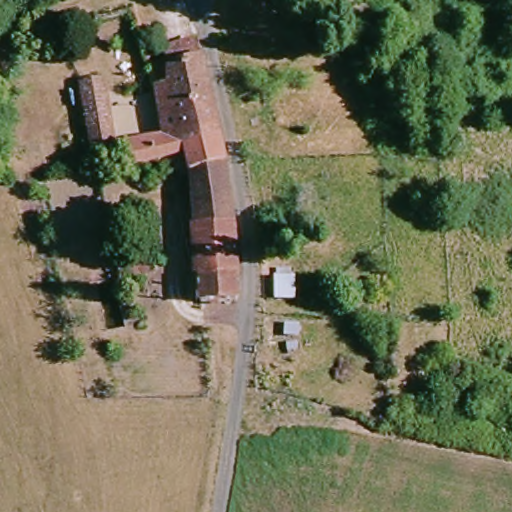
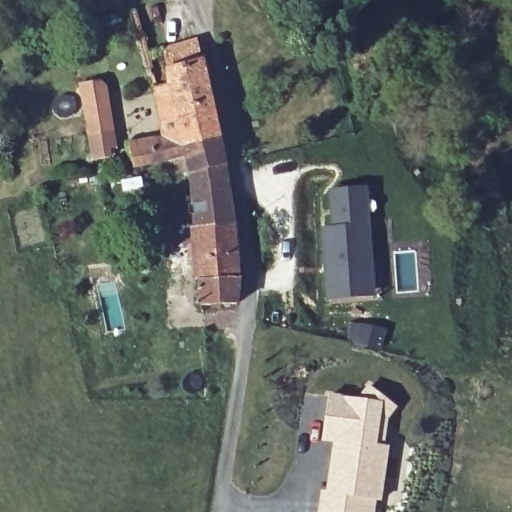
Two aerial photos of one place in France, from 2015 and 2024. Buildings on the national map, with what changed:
unchanged [(173,112),(167,92),(187,86),(184,68),(179,49),(212,34),(217,56),(226,93),(173,112)]
unchanged [(97,153),(104,152),(89,81),(107,79),(121,143),(115,144),(118,158),(106,159),(98,161),(97,153)]
unchanged [(235,129),(199,141),(200,155),(146,166),(142,144),(179,139),(173,112),(226,93),(235,129)]
unchanged [(241,165),(203,174),(200,155),(199,141),(235,129),(241,165)]
unchanged [(257,269),(253,300),(216,302),(203,174),(241,165),(257,269)]
new [(331,225),(328,189),(368,185),(376,297),(327,301),(320,227),(331,225)]
new [(351,321),(387,329),(382,353),(346,343),(351,321)]
new [(322,491),(328,492),(333,454),(339,450),(340,442),(322,439),(328,396),(359,400),(370,387),(396,407),(386,419),(382,446),(387,447),(380,501),(375,501),(373,512),(320,512),(322,491)]

